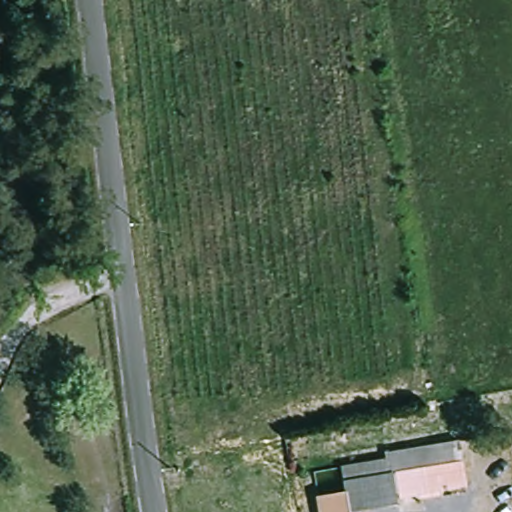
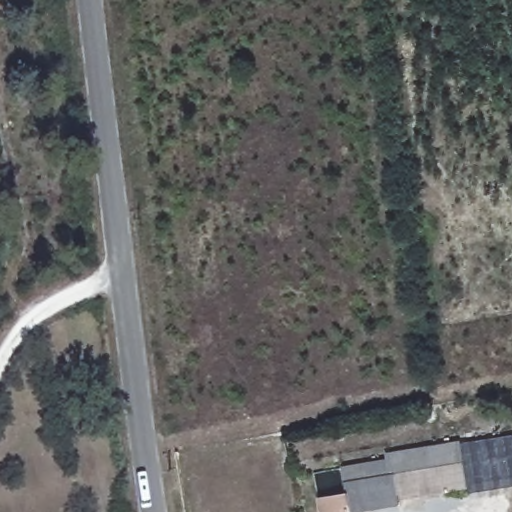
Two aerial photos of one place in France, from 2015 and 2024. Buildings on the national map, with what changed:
new [(512,435),(512,486),(467,494),(466,486),(468,486),(460,442),(512,435)]
unchanged [(319,497),(347,492),(343,467),(389,459),(388,453),(447,442),(460,440),(460,443),(468,486),(420,494),(399,498),(400,502),(350,512),(321,512),(319,497)]

